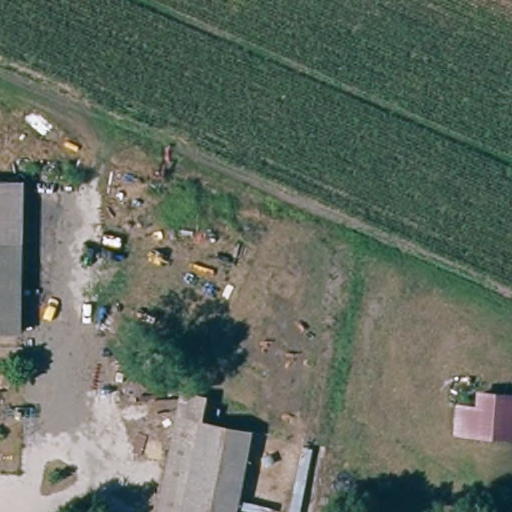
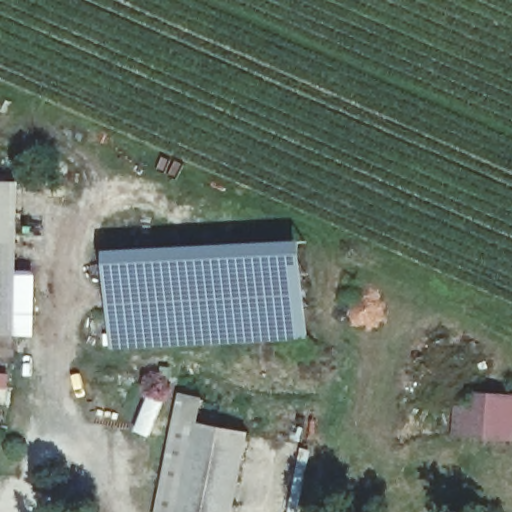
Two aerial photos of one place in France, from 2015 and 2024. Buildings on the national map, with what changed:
unchanged [(14,186),(10,249),(5,336),(0,336),(0,186),(14,186)]
unchanged [(14,186),(24,187),(20,250),(16,336),(5,336),(10,249),(14,186)]
new [(109,250),(304,240),(310,338),(115,347),(109,250)]
unchanged [(470,406),(471,388),(512,393),(512,442),(450,436),(452,405),(470,406)]
unchanged [(200,400),(196,429),(242,435),(231,512),(159,512),(175,397),(200,400)]
demolished [(406,418),(388,418),(389,397),(407,398),(406,418)]

